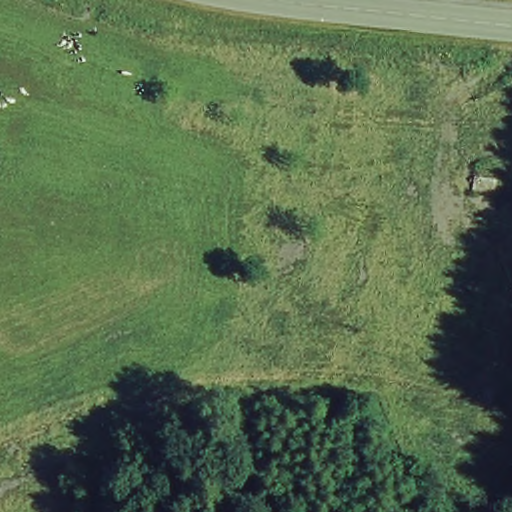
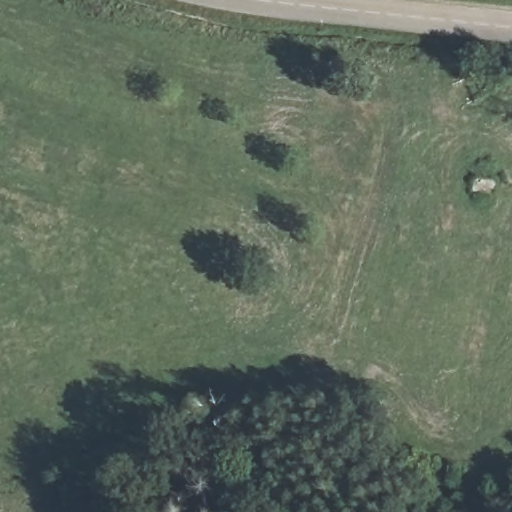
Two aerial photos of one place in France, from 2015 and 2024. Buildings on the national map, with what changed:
unchanged [(489,210),(456,204),(462,178),(494,183),(489,210)]

